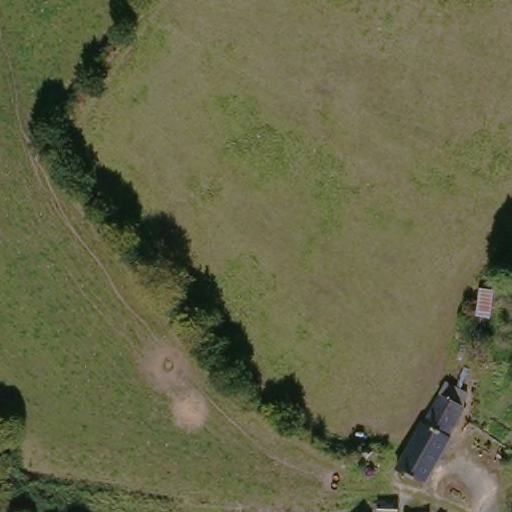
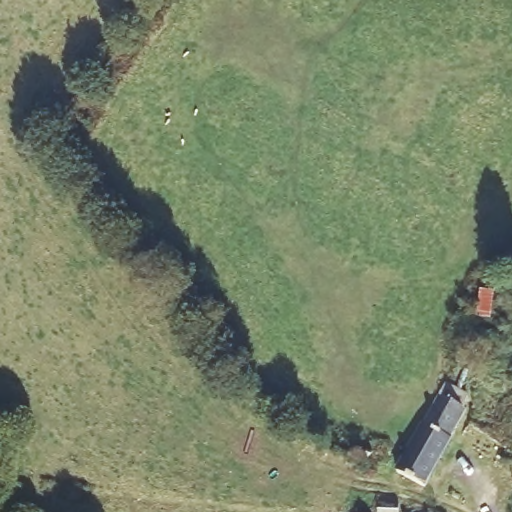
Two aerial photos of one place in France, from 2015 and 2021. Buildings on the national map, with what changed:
unchanged [(415,483),(389,465),(438,396),(448,383),(473,401),(464,414),(450,433),(415,483)]
unchanged [(392,496),(396,512),(375,512),(372,500),(392,496)]

